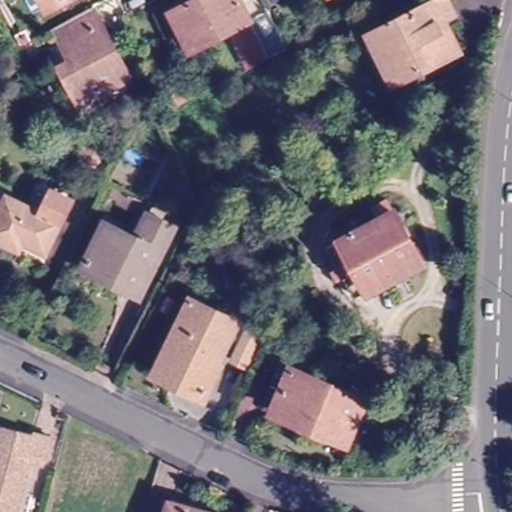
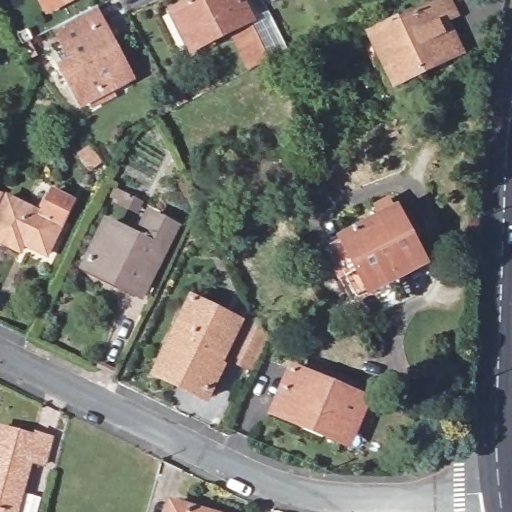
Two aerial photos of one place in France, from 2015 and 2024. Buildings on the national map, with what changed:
unchanged [(36,0),(72,0),(59,7),(44,15),(36,0)]
unchanged [(174,13),(199,0),(241,0),(251,20),(193,51),(174,13)]
unchanged [(367,37),(443,1),(451,17),(438,24),(455,58),(392,88),(367,37)]
unchanged [(69,67),(51,35),(88,15),(124,82),(78,106),(68,87),(60,72),(69,67)]
unchanged [(270,64),(247,77),(225,40),(252,26),(270,64)]
unchanged [(22,240),(18,249),(0,240),(0,207),(4,197),(36,212),(46,190),(67,199),(43,250),(22,240)]
unchanged [(332,248),(382,219),(377,210),(389,203),(394,212),(397,210),(426,266),(362,298),(332,248)]
unchanged [(105,224),(136,238),(146,215),(169,225),(139,292),(85,268),(105,224)]
unchanged [(187,299),(228,317),(209,361),(217,364),(203,396),(154,373),(187,299)]
unchanged [(295,375),(366,405),(349,444),(308,427),(307,431),(277,418),(295,375)]
unchanged [(33,437),(34,432),(49,437),(41,466),(28,462),(14,512),(0,512),(0,428),(33,437)]
unchanged [(182,512),(169,512),(170,508),(182,512)]

